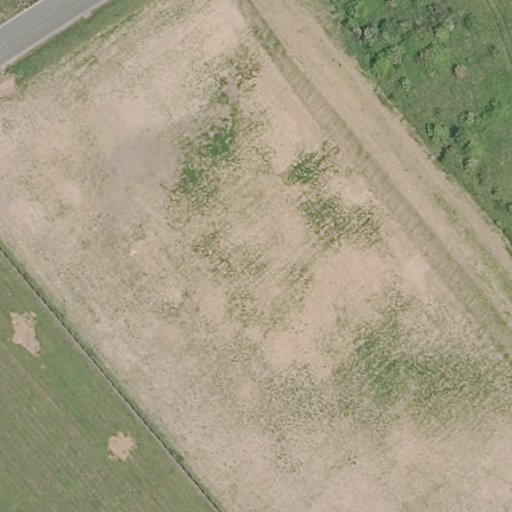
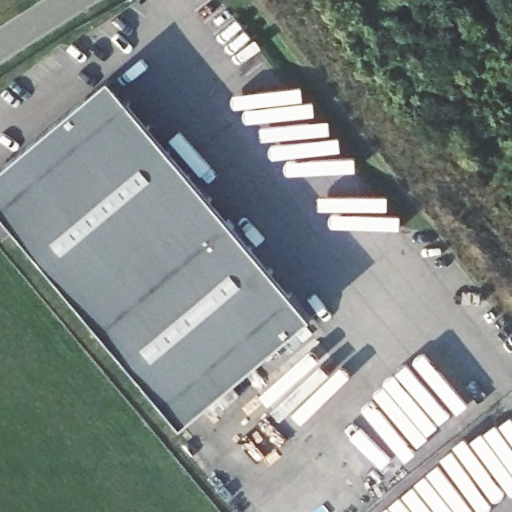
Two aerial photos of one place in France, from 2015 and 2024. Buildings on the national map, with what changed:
new [(110,77),(312,317),(182,427),(0,210),(0,169),(110,77)]

